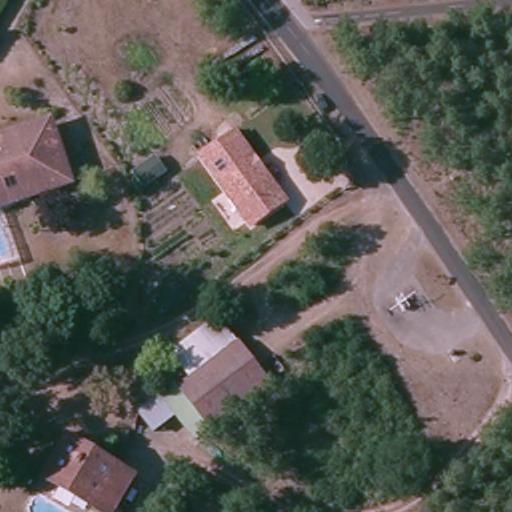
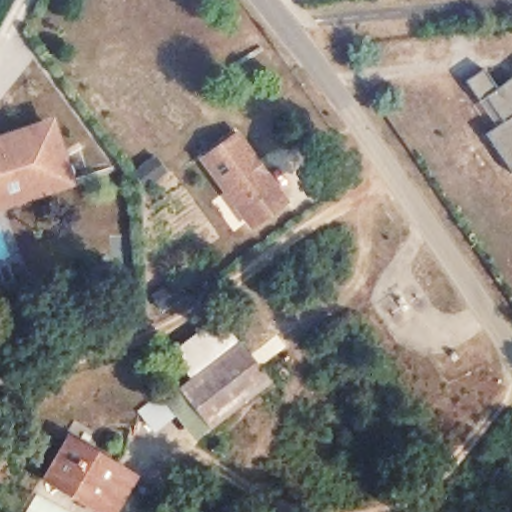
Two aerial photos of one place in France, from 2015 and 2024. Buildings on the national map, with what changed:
new [(512,78),(512,168),(488,133),(505,120),(488,95),(480,99),(468,80),(484,68),(498,88),(512,78)]
unchanged [(62,189),(8,208),(4,198),(0,199),(0,142),(39,129),(62,189)]
unchanged [(236,130),(290,204),(253,230),(198,158),(236,130)]
unchanged [(211,433),(175,384),(228,346),(264,394),(211,433)]
unchanged [(92,512),(44,477),(69,442),(127,484),(106,512),(92,512)]

